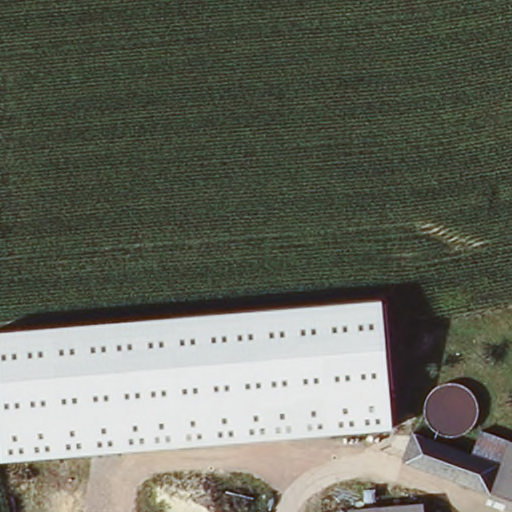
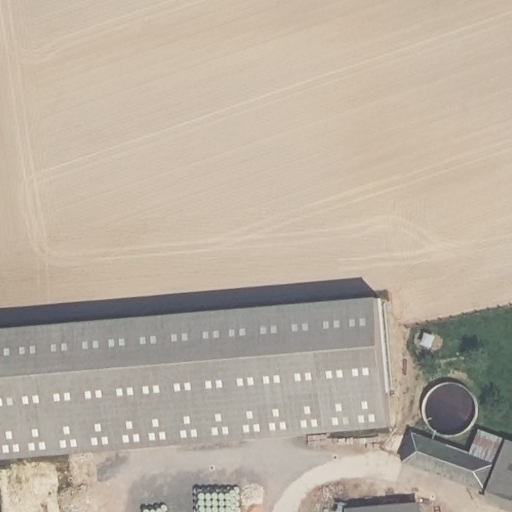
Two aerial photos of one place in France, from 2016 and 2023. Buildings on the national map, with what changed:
unchanged [(0,462),(0,330),(381,298),(391,427),(0,462)]
unchanged [(413,427),(462,443),(462,450),(468,453),(487,460),(480,486),(401,458),(413,427)]
unchanged [(468,453),(475,427),(512,439),(512,497),(480,486),(487,460),(468,453)]
unchanged [(346,510),(422,503),(423,512),(346,512),(346,510)]

